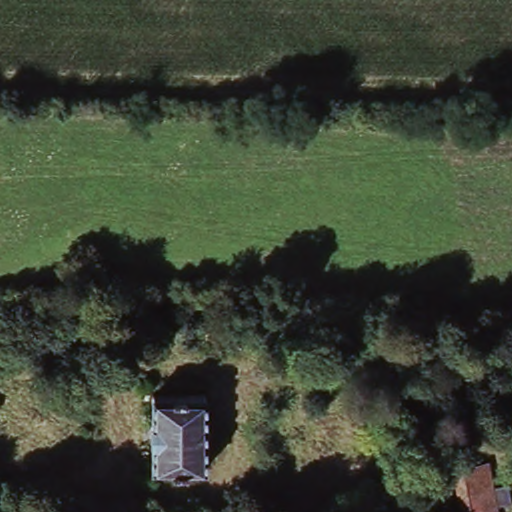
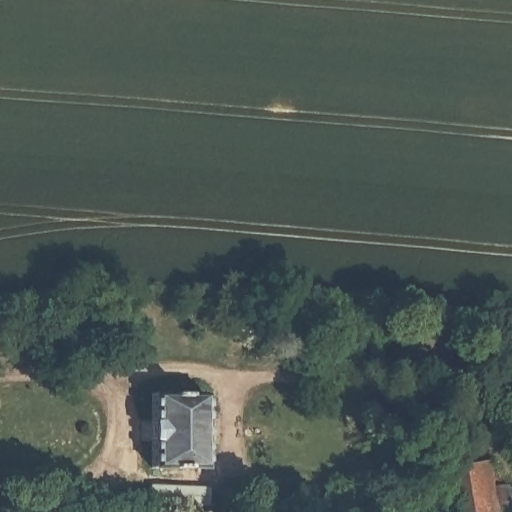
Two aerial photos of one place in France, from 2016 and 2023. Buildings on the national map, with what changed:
unchanged [(202,459),(151,461),(151,382),(204,383),(202,459)]
unchanged [(498,512),(464,512),(457,467),(488,462),(498,512)]

